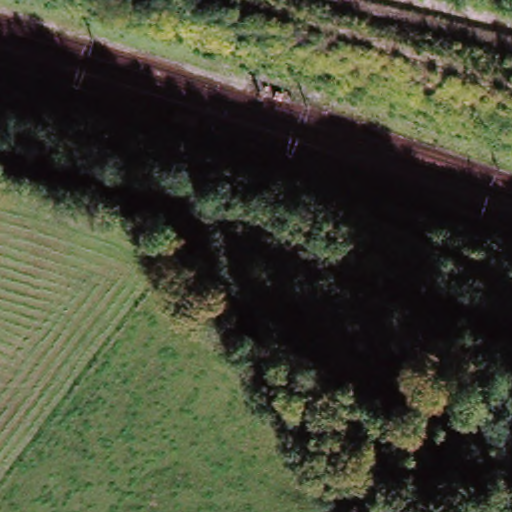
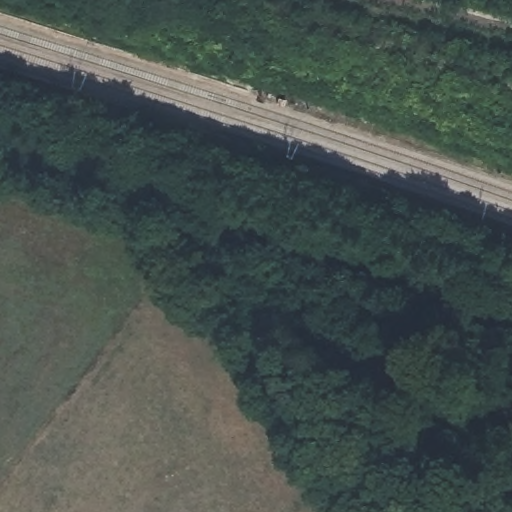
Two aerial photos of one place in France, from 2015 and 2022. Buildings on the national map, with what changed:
unchanged [(199,129),(193,149),(169,142),(175,120),(199,129)]

